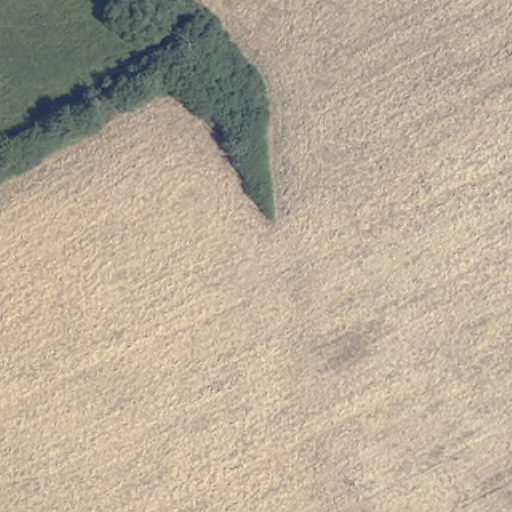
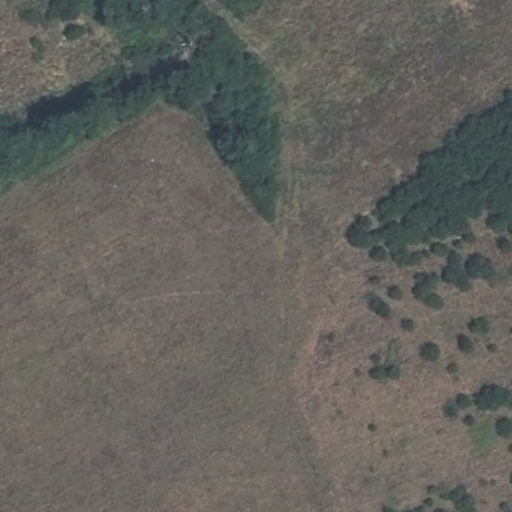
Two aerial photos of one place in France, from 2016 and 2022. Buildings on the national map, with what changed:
[]

